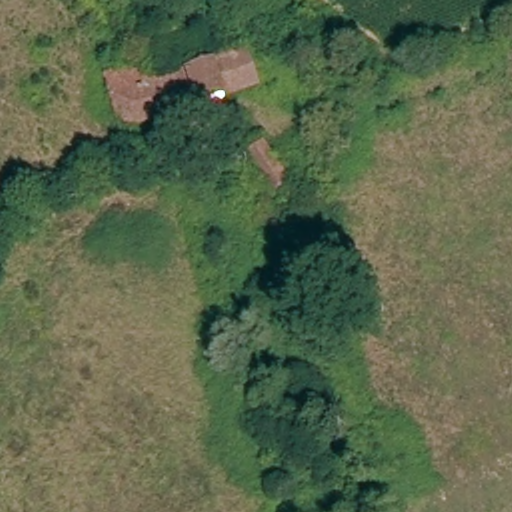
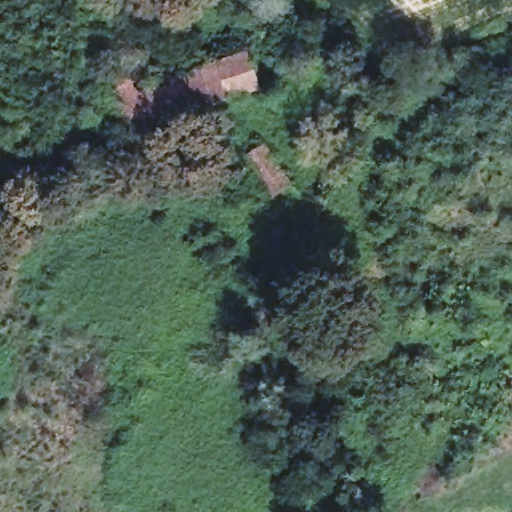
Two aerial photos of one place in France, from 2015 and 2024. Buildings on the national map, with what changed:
unchanged [(214,68),(232,62),(246,57),(256,87),(224,98),(196,107),(170,116),(162,118),(153,88),(157,87),(177,80),(187,77),(214,68)]
unchanged [(122,132),(106,82),(147,68),(153,88),(162,118),(122,132)]
unchanged [(275,203),(243,162),(265,146),(297,186),(275,203)]

